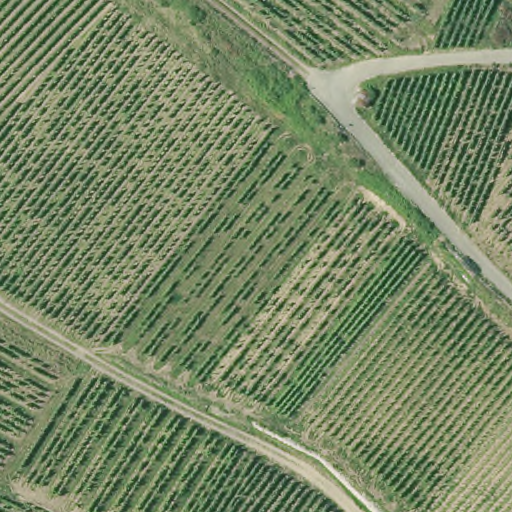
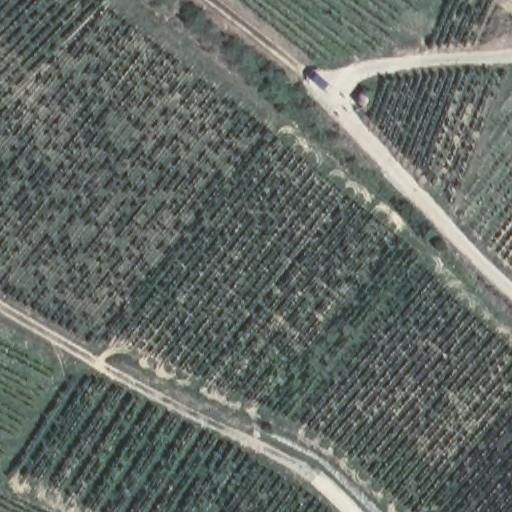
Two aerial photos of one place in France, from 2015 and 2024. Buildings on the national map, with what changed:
unchanged [(363,89),(372,94),(364,107),(354,101),(363,89)]

